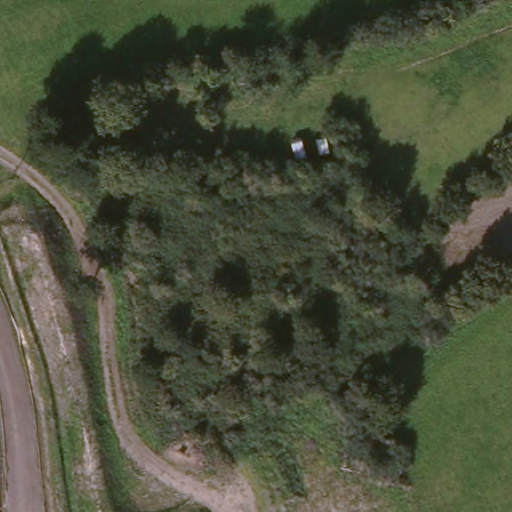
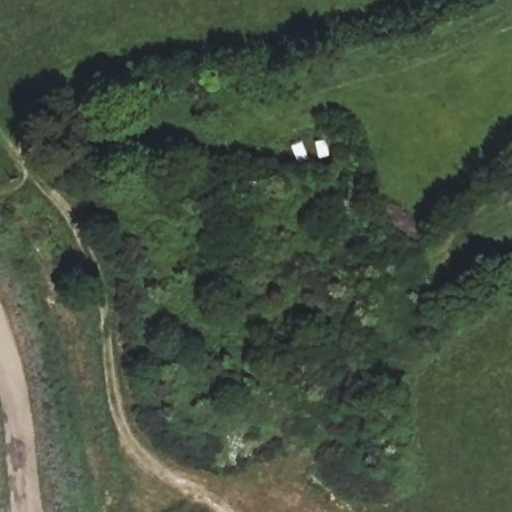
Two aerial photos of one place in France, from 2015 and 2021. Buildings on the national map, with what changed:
[]

